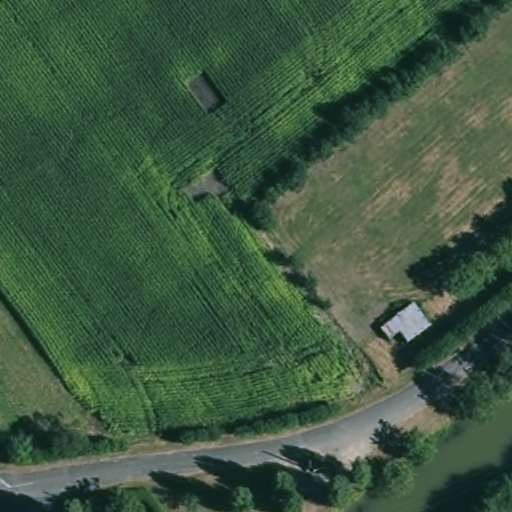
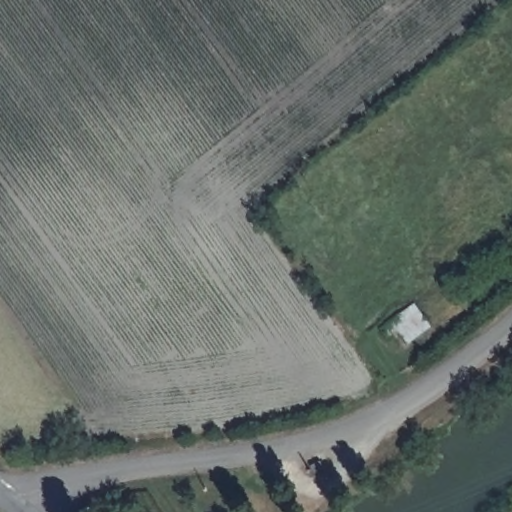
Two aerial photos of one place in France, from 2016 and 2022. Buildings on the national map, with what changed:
unchanged [(378,355),(406,338),(421,364),(396,380),(378,355)]

